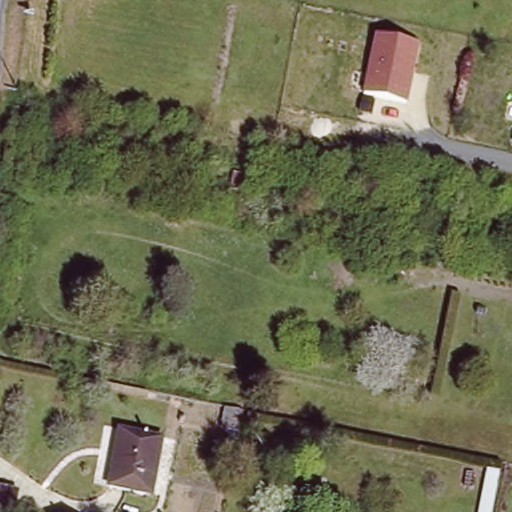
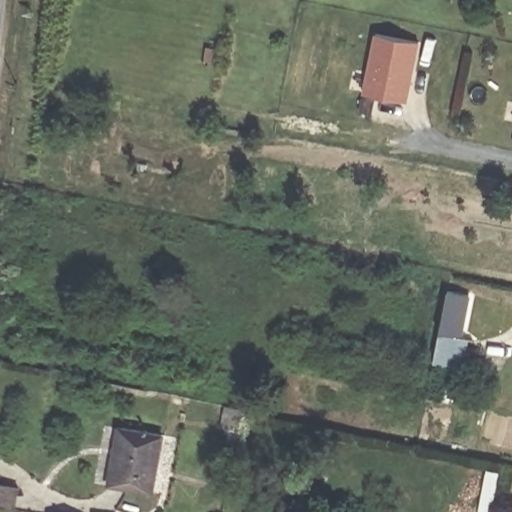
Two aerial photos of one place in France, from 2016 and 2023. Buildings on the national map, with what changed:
unchanged [(418,40),(407,99),(363,91),(373,31),(418,40)]
new [(449,293),(470,297),(462,338),(467,339),(462,366),(435,360),(449,293)]
unchanged [(167,434),(155,488),(113,479),(125,425),(167,434)]
unchanged [(491,512),(477,512),(485,468),(500,469),(491,512)]
unchanged [(0,489),(21,492),(17,509),(0,506),(0,489)]

